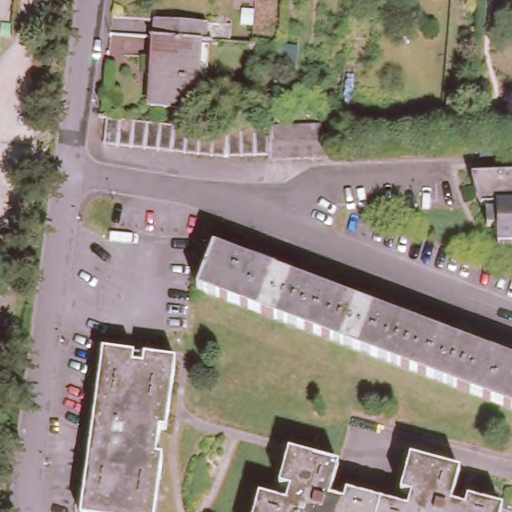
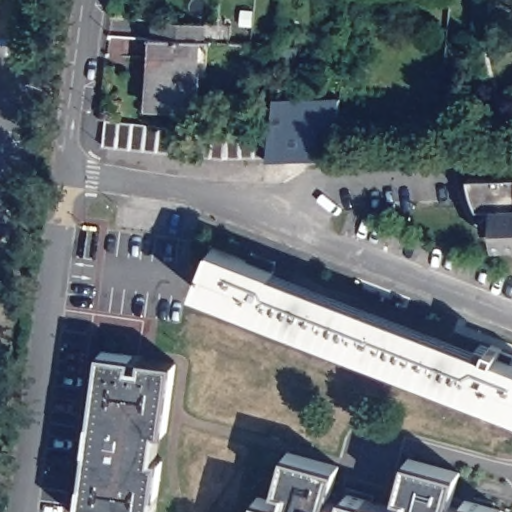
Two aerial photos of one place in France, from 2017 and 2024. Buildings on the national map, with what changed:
unchanged [(208,25),(207,44),(204,44),(156,41),(154,41),(154,22),(208,25)]
unchanged [(154,111),(156,41),(204,44),(202,113),(154,111)]
unchanged [(139,148),(125,146),(112,145),(98,144),(99,119),(114,121),(126,121),(141,123),(154,125),(167,126),(181,127),(195,129),(208,130),(221,131),(221,130),(238,129),(253,128),(266,128),(266,125),(283,125),(299,124),(314,123),(331,123),(328,156),(311,156),(295,156),(280,157),(264,158),(264,153),(250,154),(236,154),(219,155),(206,154),(193,153),(180,151),(166,150),(153,149),(139,148)]
unchanged [(498,226),(489,226),(487,204),(481,204),(475,195),(471,185),(468,175),(475,175),(475,152),(494,151),(495,174),(512,172),(512,244),(499,245),(498,226)]
unchanged [(3,256),(5,237),(39,240),(38,258),(3,256)]
unchanged [(213,247),(246,259),(249,252),(273,260),(269,269),(489,352),(493,344),(512,350),(512,409),(197,289),(213,247)]
unchanged [(166,434),(159,434),(157,460),(161,460),(155,512),(83,512),(102,355),(174,364),(166,434)]
unchanged [(291,486),(283,484),(291,452),(342,466),(334,498),(348,501),(350,493),(410,508),(413,495),(403,492),(413,459),(461,473),(452,506),(466,510),(469,501),(504,510),(503,512),(256,512),(261,496),(286,503),(291,486)]

